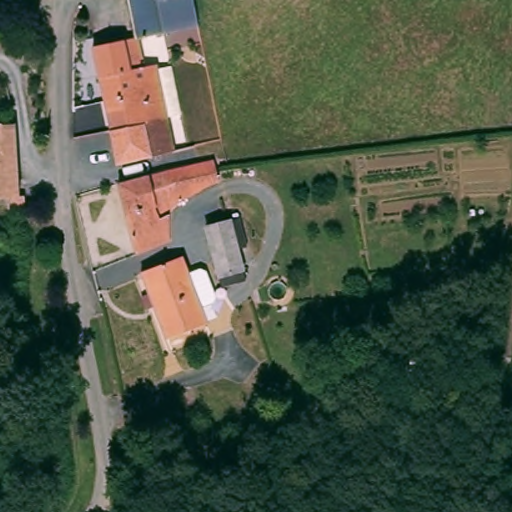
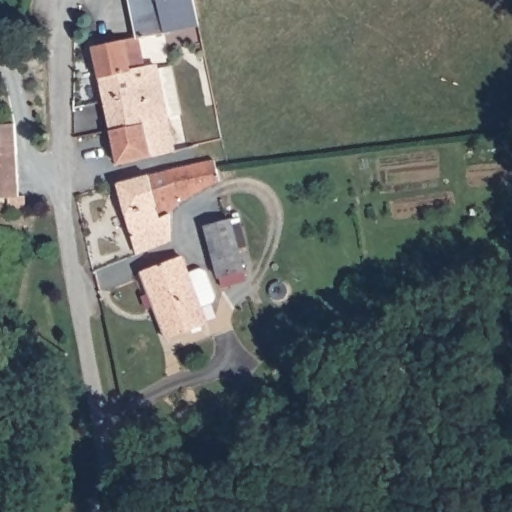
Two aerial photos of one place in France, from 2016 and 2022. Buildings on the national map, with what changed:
unchanged [(136,36),(126,0),(191,0),(196,28),(136,36)]
unchanged [(136,36),(141,66),(157,62),(177,148),(118,162),(94,46),(136,36)]
unchanged [(12,198),(0,197),(0,130),(16,131),(12,198)]
unchanged [(174,214),(177,242),(134,248),(126,173),(226,158),(227,165),(254,161),(255,178),(207,185),(174,214)]
unchanged [(225,218),(246,267),(224,275),(203,226),(225,218)]
unchanged [(185,254),(213,321),(169,340),(141,271),(185,254)]

